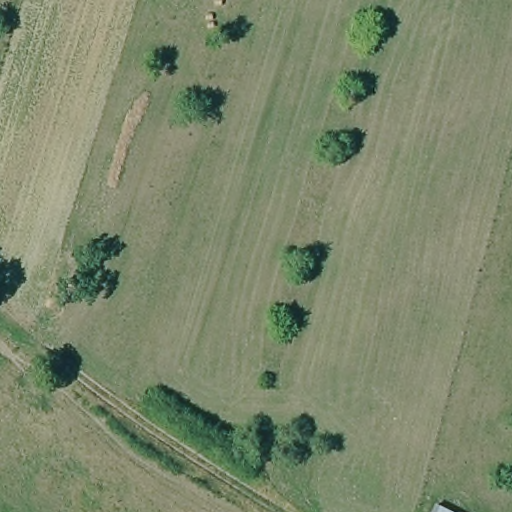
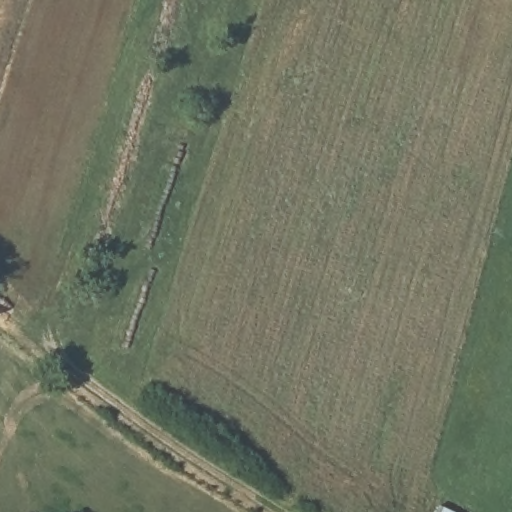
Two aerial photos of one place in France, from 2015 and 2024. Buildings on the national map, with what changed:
unchanged [(430,512),(435,502),(457,512),(430,512)]

